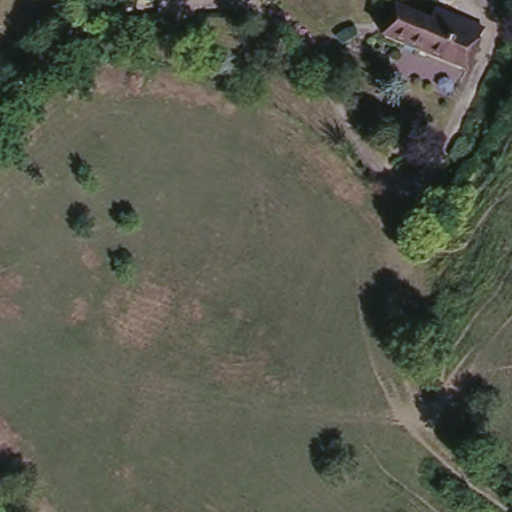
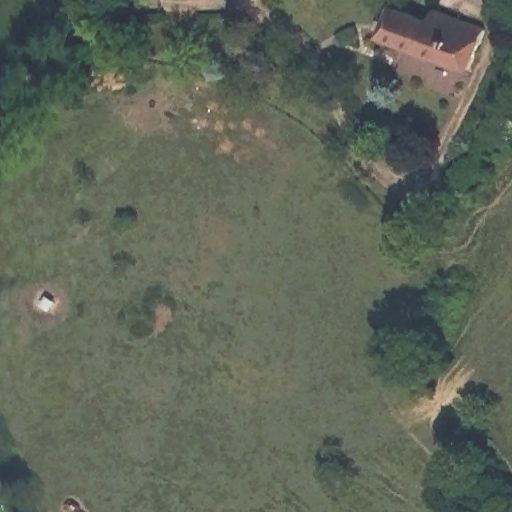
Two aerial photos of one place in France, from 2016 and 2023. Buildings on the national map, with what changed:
unchanged [(162,1),(161,0),(163,0),(162,1)]
unchanged [(397,17),(428,30),(435,17),(484,40),(467,79),(385,43),(397,17)]

